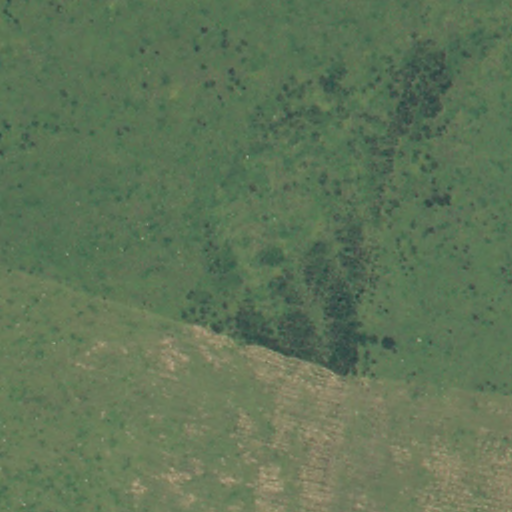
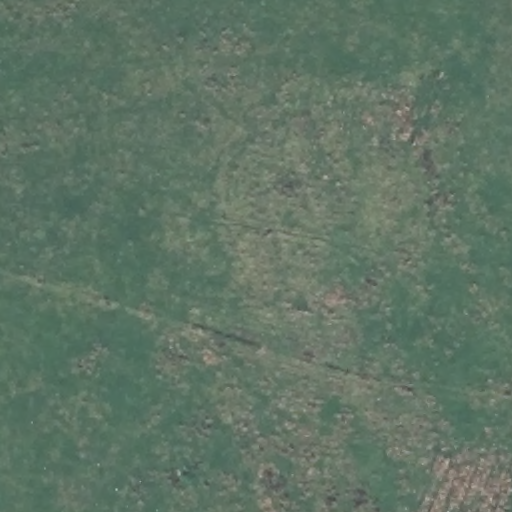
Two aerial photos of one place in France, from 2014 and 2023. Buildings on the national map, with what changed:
[]

